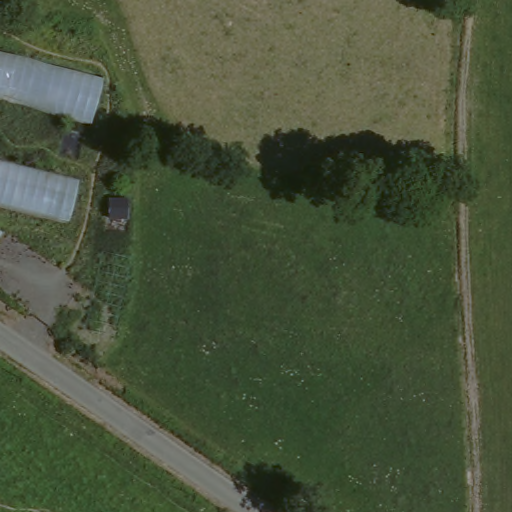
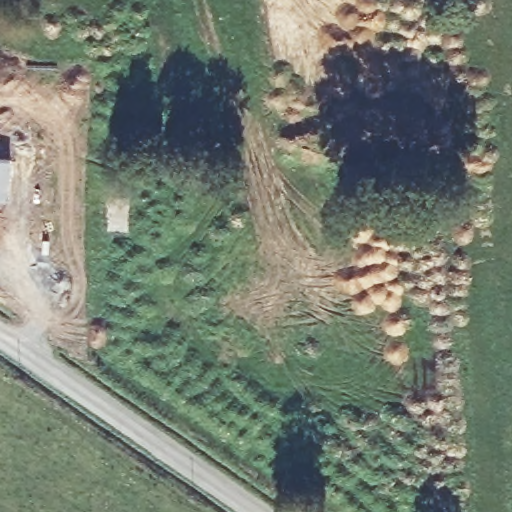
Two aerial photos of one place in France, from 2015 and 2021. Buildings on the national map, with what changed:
demolished [(96,119),(0,98),(0,45),(106,71),(96,119)]
demolished [(67,228),(0,210),(0,167),(75,184),(67,228)]

